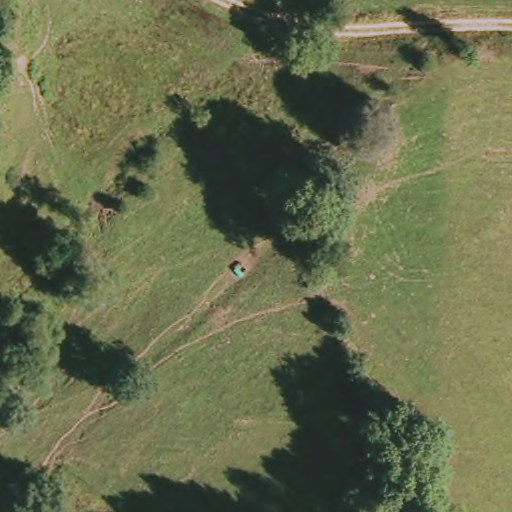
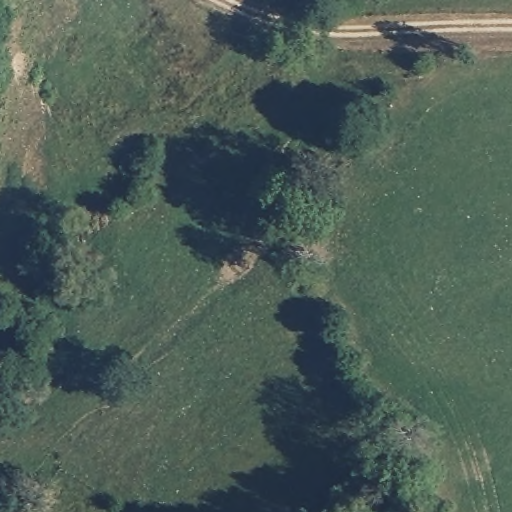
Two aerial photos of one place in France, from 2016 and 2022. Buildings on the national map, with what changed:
[]

